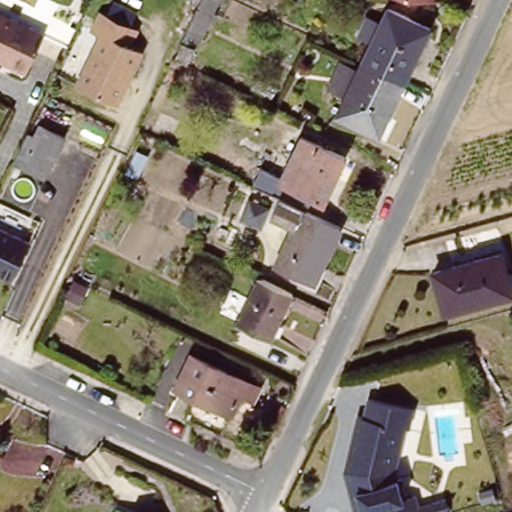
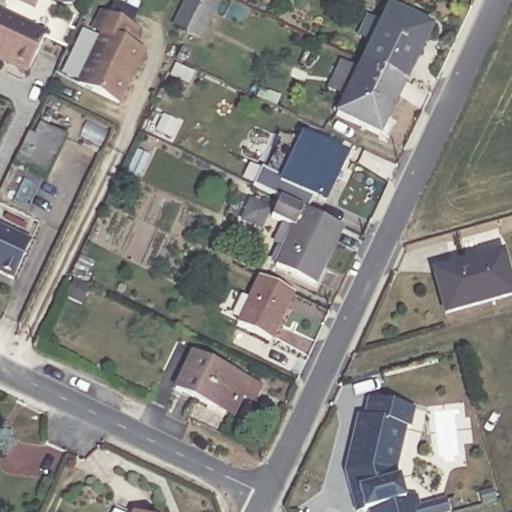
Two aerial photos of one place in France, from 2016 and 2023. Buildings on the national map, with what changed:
unchanged [(200,0),(218,0),(199,41),(184,34),(200,0)]
unchanged [(427,0),(435,0),(435,1),(427,0)]
unchanged [(30,64),(0,49),(0,5),(47,28),(30,64)]
unchanged [(361,62),(387,8),(429,29),(404,82),(361,62)]
unchanged [(124,54),(127,56),(112,86),(122,91),(115,106),(80,89),(100,44),(93,40),(100,24),(132,39),(124,54)]
unchanged [(377,136),(335,116),(361,62),(404,82),(377,136)]
unchanged [(17,159),(32,129),(37,132),(44,120),(69,132),(49,174),(17,159)]
unchanged [(252,183),(261,166),(280,175),(301,133),(343,153),(330,181),(316,180),(302,207),(252,183)]
unchanged [(334,242),(313,286),(272,267),(294,223),(334,242)]
unchanged [(12,276),(0,269),(0,226),(30,241),(12,276)]
unchanged [(506,293),(440,312),(429,271),(495,253),(506,293)]
unchanged [(269,342),(235,326),(259,278),(292,294),(269,342)]
unchanged [(254,388),(247,401),(240,397),(230,417),(173,389),(189,355),(254,388)]
unchanged [(415,426),(407,423),(397,472),(404,495),(419,492),(421,503),(445,497),(449,512),(353,512),(342,468),(354,408),(365,410),(369,395),(418,406),(415,426)]
unchanged [(134,512),(136,507),(145,512),(134,512)]

